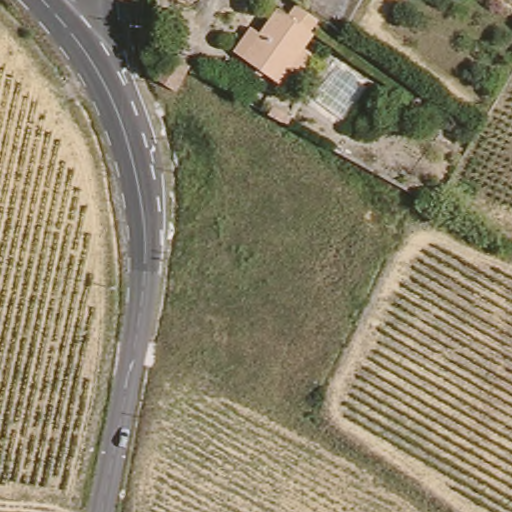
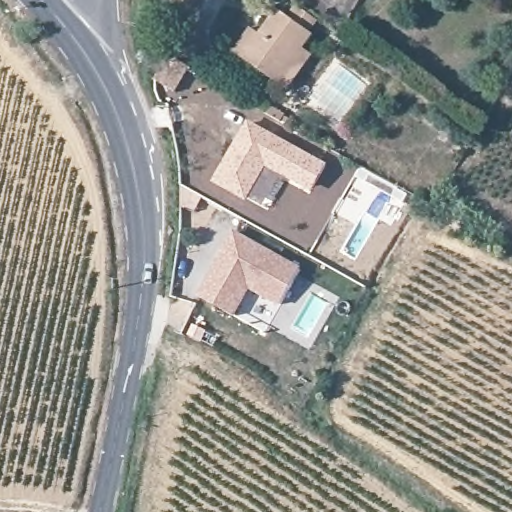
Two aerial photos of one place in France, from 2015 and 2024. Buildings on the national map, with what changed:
unchanged [(281,87),(272,80),(238,55),(228,47),(245,25),(254,32),(273,5),(284,13),(290,3),(311,18),(304,28),(308,31),(298,45),(307,53),(281,87)]
unchanged [(154,74),(151,72),(154,65),(160,68),(167,55),(188,70),(186,74),(171,94),(151,81),(154,74)]
new [(329,164),(314,192),(267,166),(246,199),(213,182),(249,120),(329,164)]
new [(304,266),(284,305),(251,288),(236,314),(198,294),(233,229),(304,266)]

